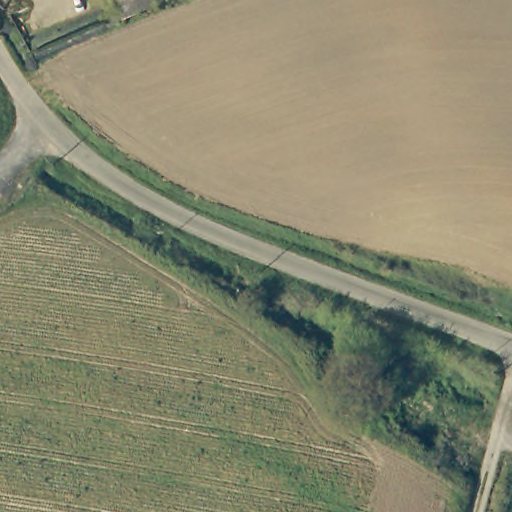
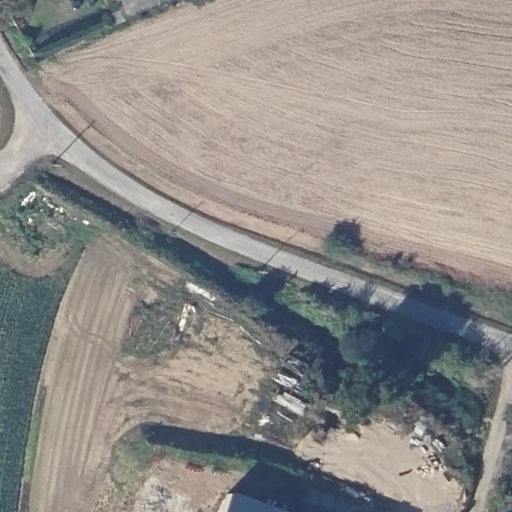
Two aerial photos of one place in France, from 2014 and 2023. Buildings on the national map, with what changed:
unchanged [(106,15),(121,8),(118,0),(169,0),(111,28),(106,15)]
new [(284,512),(218,512),(226,491),(284,512)]

